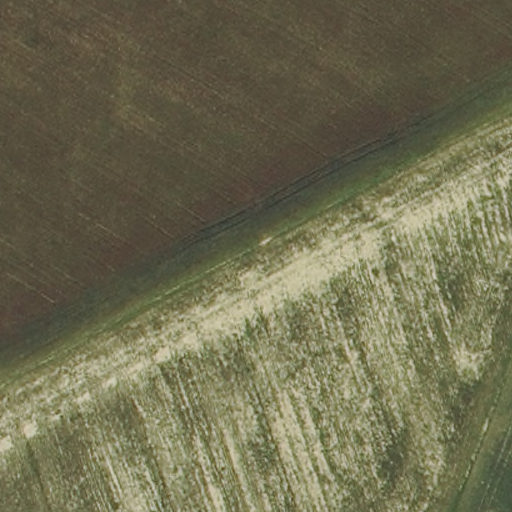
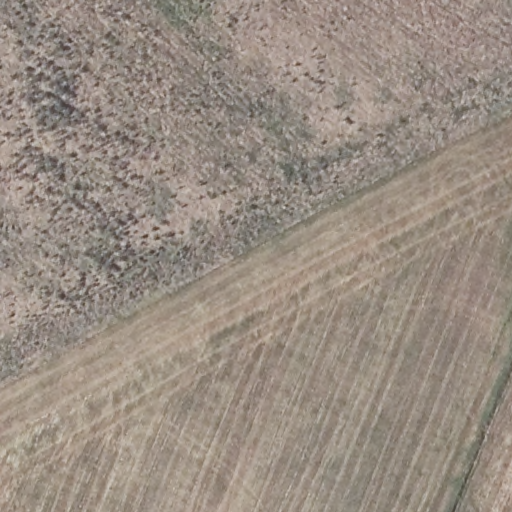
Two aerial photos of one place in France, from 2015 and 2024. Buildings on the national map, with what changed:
[]

